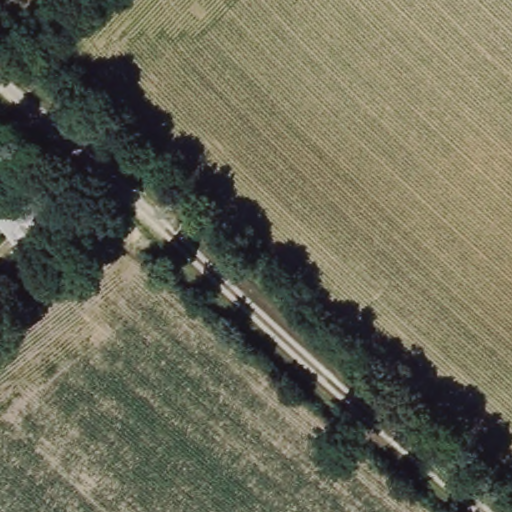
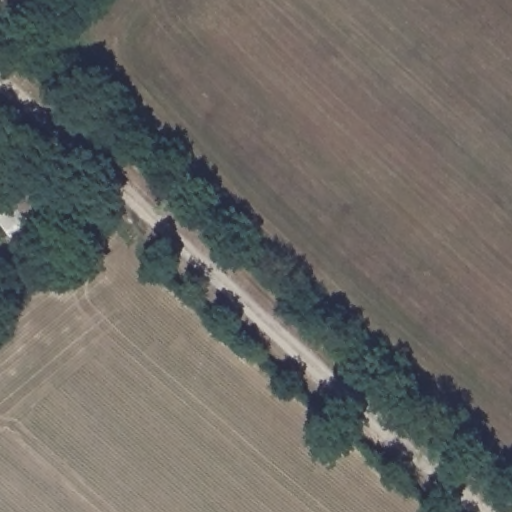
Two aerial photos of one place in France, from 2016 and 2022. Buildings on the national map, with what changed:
unchanged [(48,236),(20,257),(0,228),(0,212),(22,198),(48,236)]

